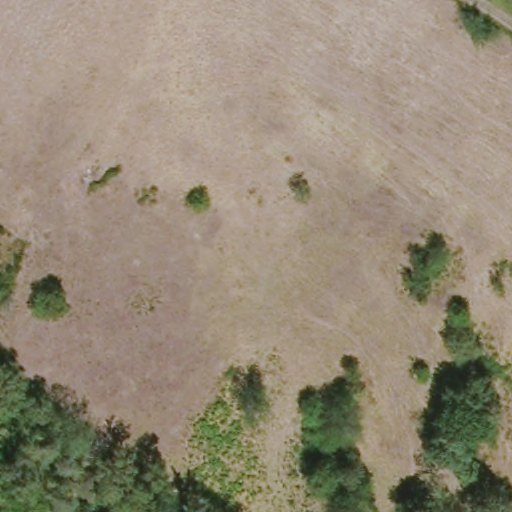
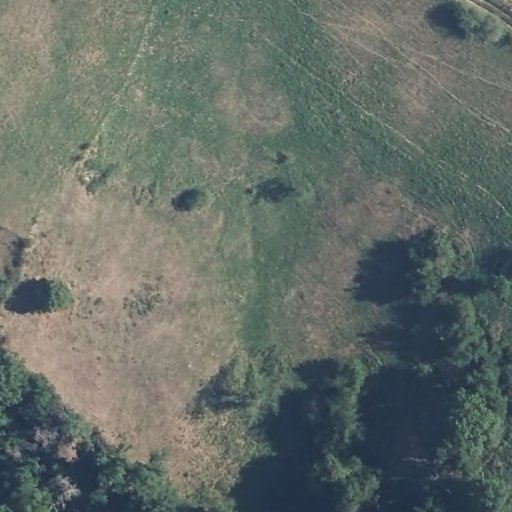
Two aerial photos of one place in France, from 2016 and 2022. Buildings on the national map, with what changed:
[]

